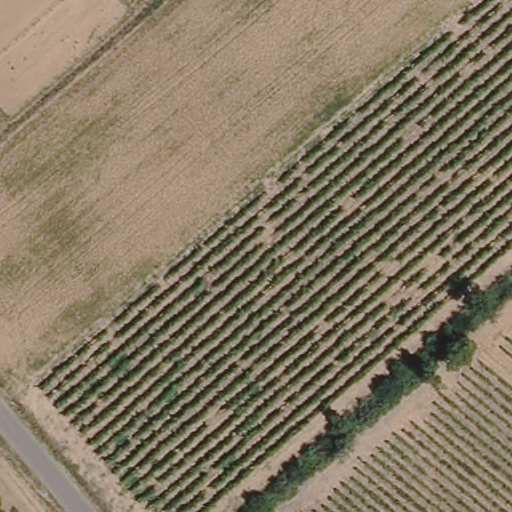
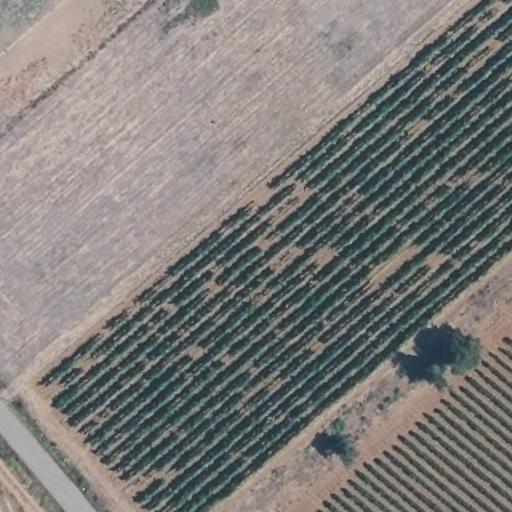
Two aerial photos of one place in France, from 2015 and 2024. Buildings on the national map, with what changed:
[]

